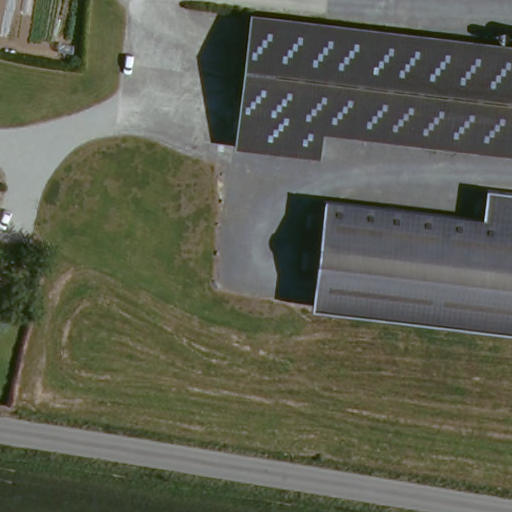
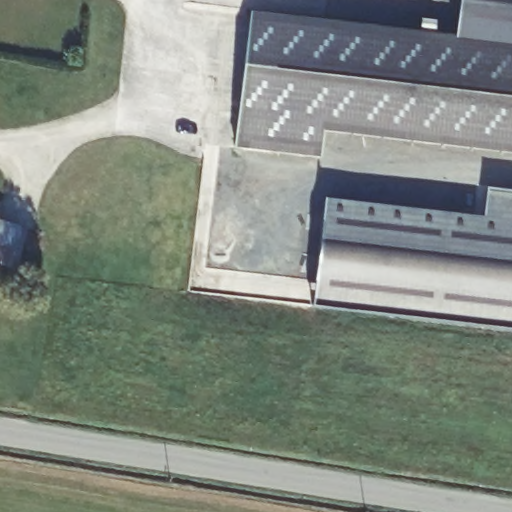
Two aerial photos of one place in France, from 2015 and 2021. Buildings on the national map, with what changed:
new [(512,52),(455,44),(459,0),(512,0),(512,52)]
unchanged [(310,156),(228,144),(248,16),(512,52),(512,156),(316,128),(310,156)]
unchanged [(483,190),(512,194),(512,336),(309,310),(317,205),(476,219),(483,190)]

